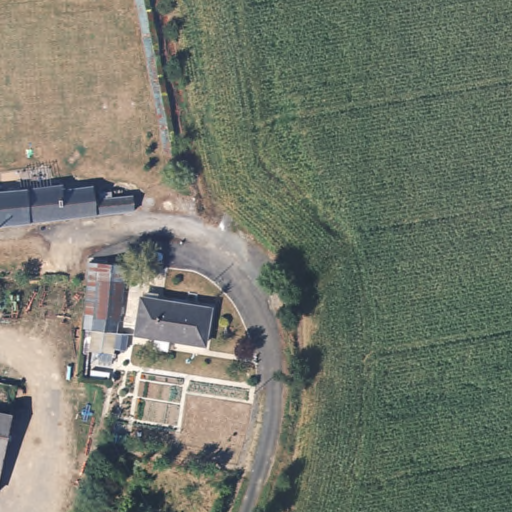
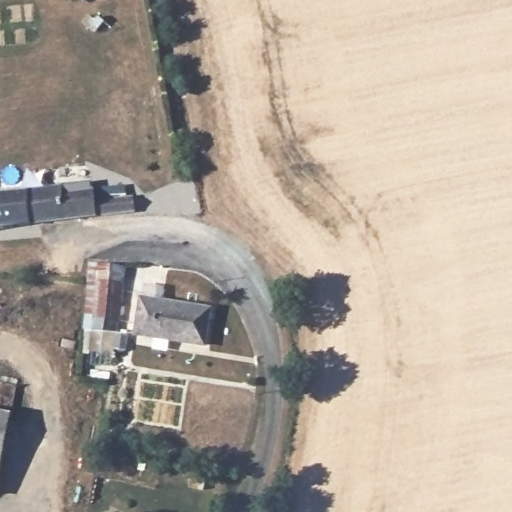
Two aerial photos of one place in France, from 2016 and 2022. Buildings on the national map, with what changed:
unchanged [(61,196),(92,192),(94,203),(145,197),(146,214),(0,231),(0,197),(60,189),(61,196)]
unchanged [(116,288),(112,324),(87,323),(91,284),(116,288)]
unchanged [(211,309),(207,348),(138,340),(142,302),(211,309)]
unchanged [(0,462),(0,422),(15,428),(0,462)]

